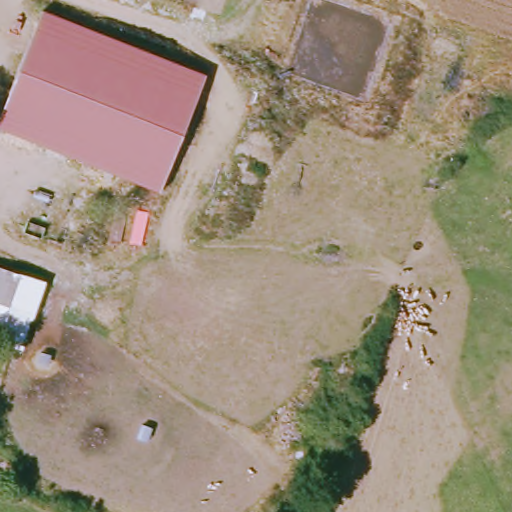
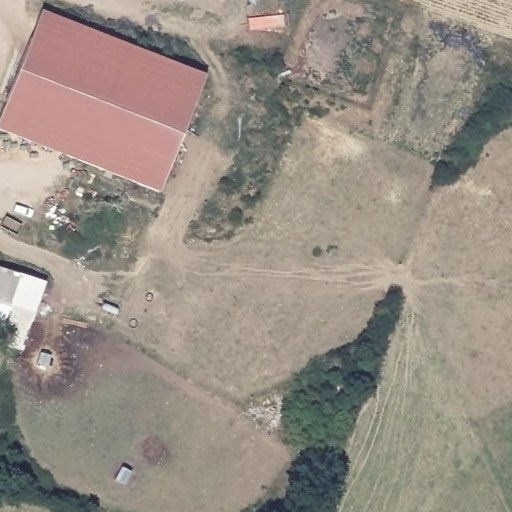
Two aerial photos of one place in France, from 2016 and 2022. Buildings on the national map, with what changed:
unchanged [(0,129),(0,115),(42,11),(206,76),(158,191),(0,129)]
unchanged [(22,352),(0,345),(0,272),(45,286),(22,352)]

